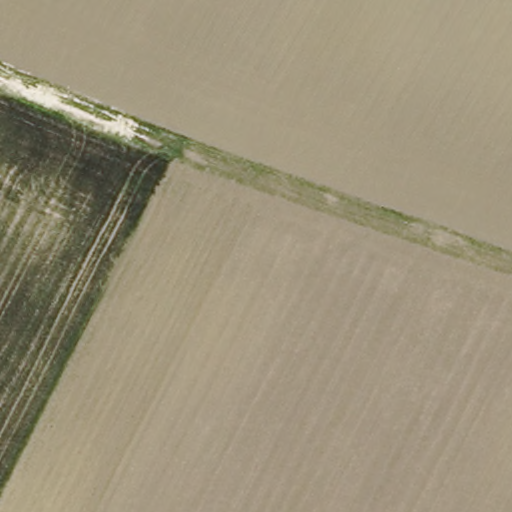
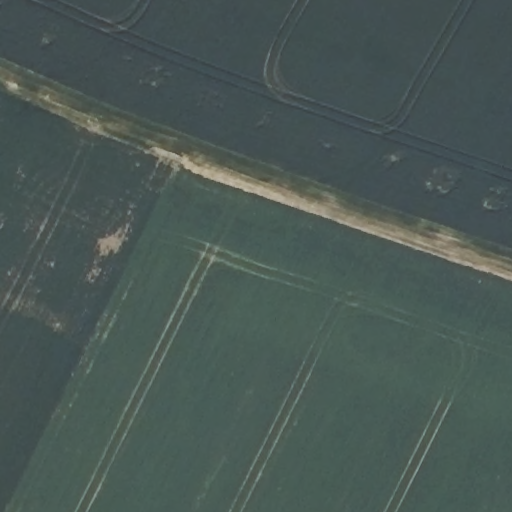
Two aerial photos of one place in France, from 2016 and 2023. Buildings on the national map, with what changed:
[]

